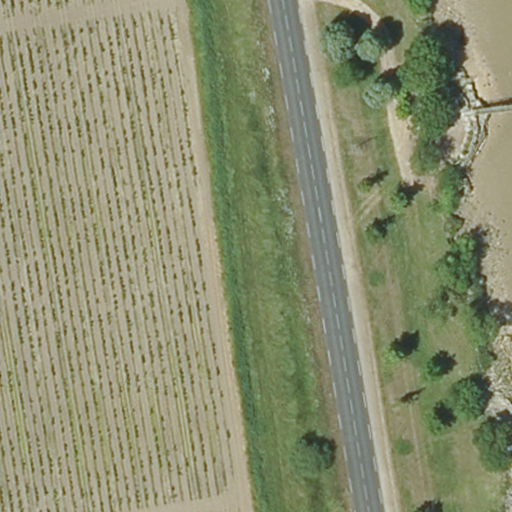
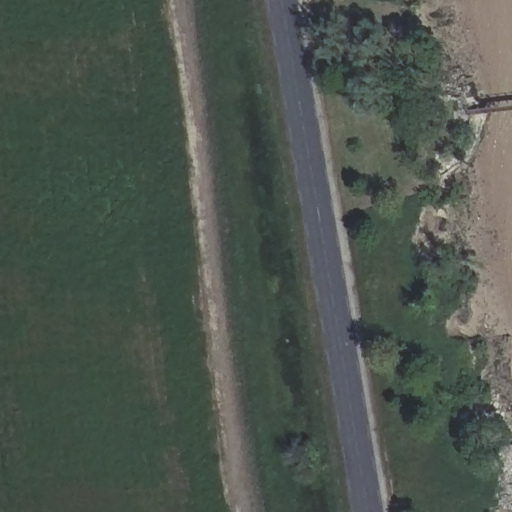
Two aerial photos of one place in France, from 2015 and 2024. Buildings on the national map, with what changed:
[]

